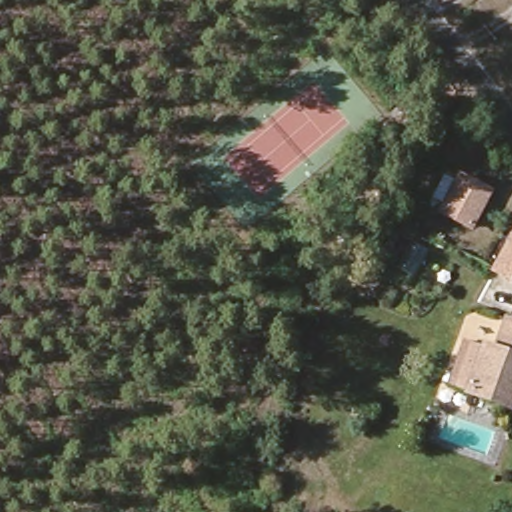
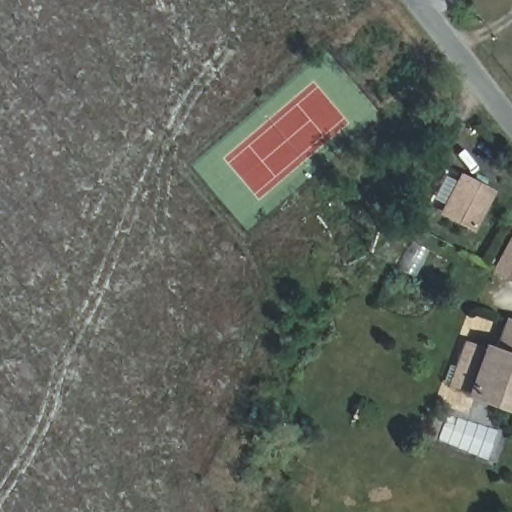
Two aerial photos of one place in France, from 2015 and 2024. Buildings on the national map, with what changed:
unchanged [(469,229),(441,212),(462,178),(490,195),(469,229)]
unchanged [(512,261),(512,286),(501,282),(512,261)]
unchanged [(450,389),(466,345),(485,352),(485,351),(495,354),(506,324),(512,326),(512,412),(450,389)]

